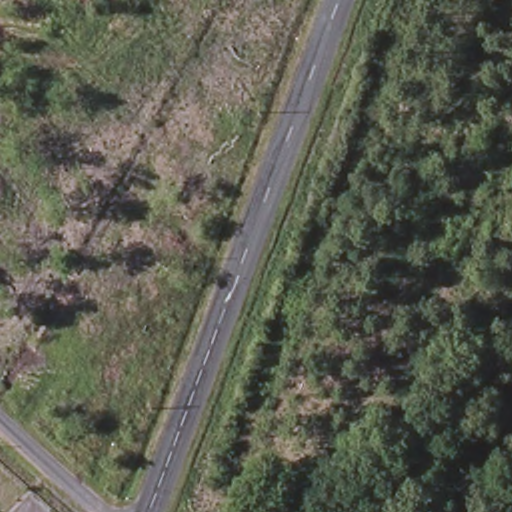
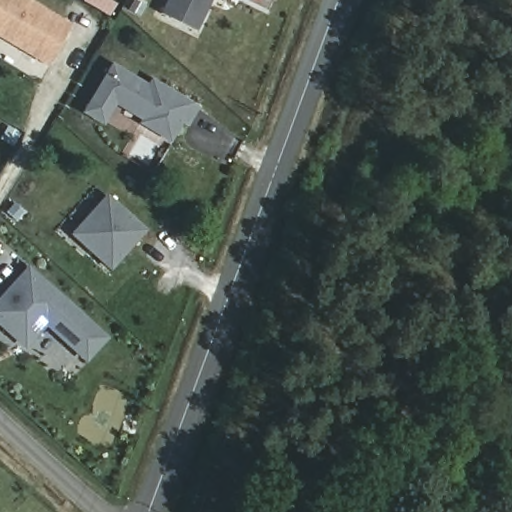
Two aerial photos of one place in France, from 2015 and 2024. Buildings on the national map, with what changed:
new [(0,35),(0,0),(26,0),(68,24),(45,62),(0,35)]
new [(158,12),(164,0),(211,0),(195,31),(158,12)]
new [(189,126),(183,122),(171,143),(137,123),(140,119),(115,105),(104,124),(81,110),(111,62),(146,83),(150,76),(200,106),(189,126)]
new [(110,271),(72,234),(106,193),(147,230),(110,271)]
new [(85,363),(46,326),(25,350),(0,328),(0,295),(27,264),(109,337),(85,363)]

